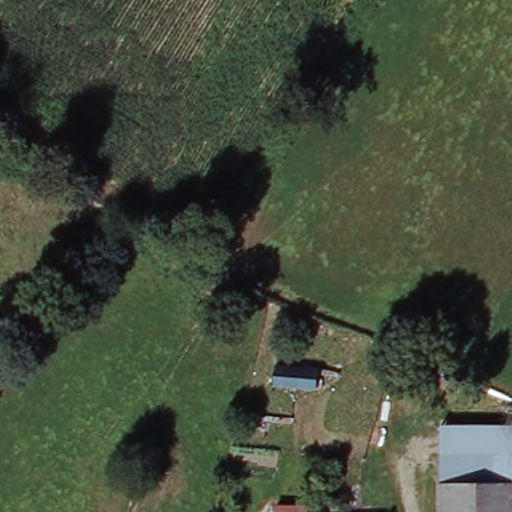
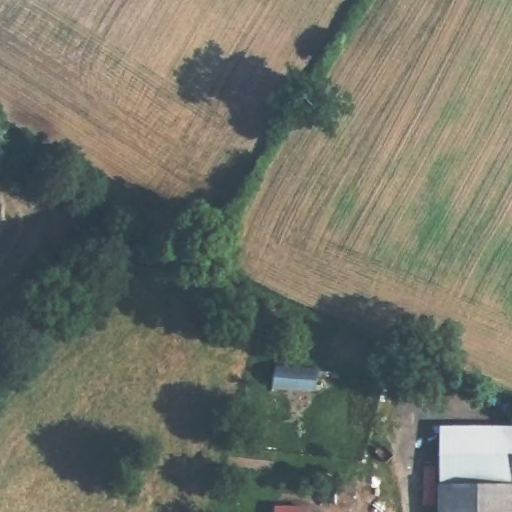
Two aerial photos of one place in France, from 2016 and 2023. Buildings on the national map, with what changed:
unchanged [(323,364),(319,383),(278,379),(280,362),(323,364)]
unchanged [(512,456),(439,457),(440,422),(512,424),(512,456)]
unchanged [(439,457),(512,456),(512,482),(440,483),(439,457)]
unchanged [(512,482),(512,512),(441,512),(440,483),(512,482)]
unchanged [(311,505),(311,512),(280,512),(280,507),(311,505)]

